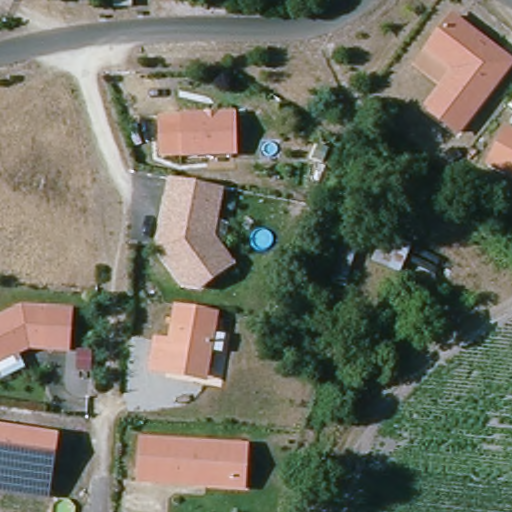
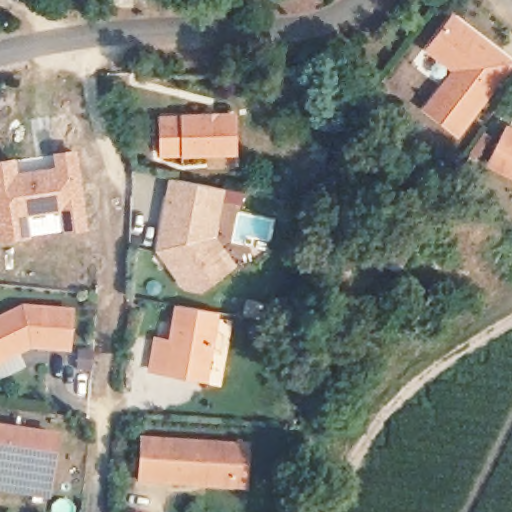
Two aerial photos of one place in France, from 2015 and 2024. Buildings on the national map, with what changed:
unchanged [(133,7),(115,7),(115,0),(133,0),(133,7)]
unchanged [(512,62),(512,64),(459,134),(426,109),(456,71),(429,50),(453,18),(512,62)]
unchanged [(200,120),(199,118),(249,116),(250,153),(200,155),(200,153),(179,154),(177,121),(200,120)]
unchanged [(483,165),(504,126),(512,129),(512,179),(483,165)]
new [(12,174),(54,169),(52,154),(71,151),(81,227),(62,229),(60,208),(22,213),(25,235),(6,237),(0,238),(0,161),(10,160),(12,174)]
unchanged [(217,219),(209,224),(205,239),(216,242),(234,266),(201,289),(185,286),(159,250),(160,245),(165,241),(169,226),(165,220),(172,179),(222,189),(217,219)]
unchanged [(323,280),(342,222),(361,229),(343,289),(323,280)]
unchanged [(34,342),(0,358),(0,316),(26,303),(75,307),(71,345),(34,342)]
unchanged [(168,374),(151,371),(157,339),(171,341),(178,306),(217,313),(207,370),(205,381),(168,374)]
unchanged [(29,493),(0,489),(0,425),(35,431),(29,493)]
unchanged [(241,485),(241,490),(194,487),(137,483),(140,442),(235,449),(245,450),(241,485)]

